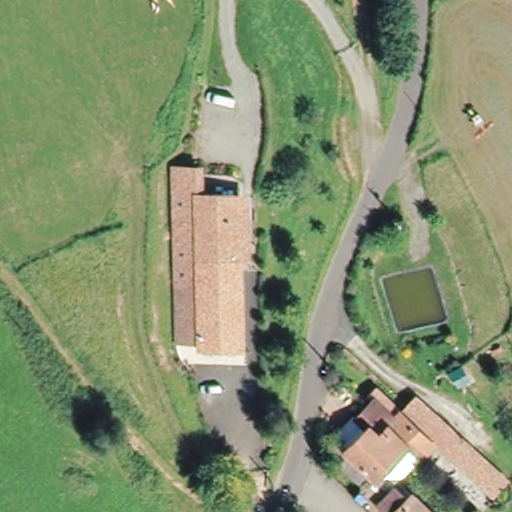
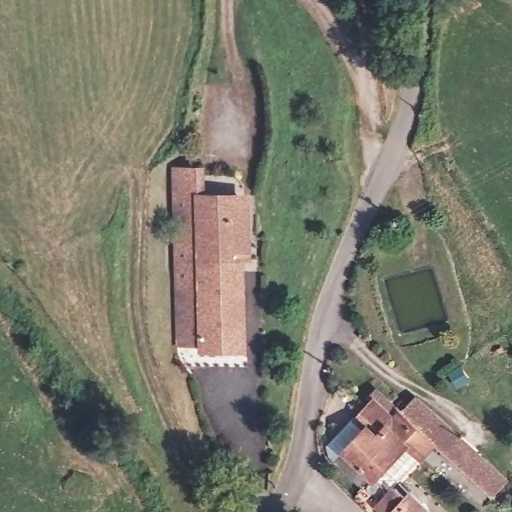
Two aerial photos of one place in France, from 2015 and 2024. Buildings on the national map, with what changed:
unchanged [(172,168),(194,167),(195,193),(200,289),(184,290),(186,327),(202,326),(203,346),(180,347),(173,194),(173,190),(172,168)]
unchanged [(238,191),(245,344),(203,346),(202,326),(186,327),(184,290),(200,289),(195,193),(238,191)]
unchanged [(385,483),(370,497),(334,463),(370,428),(356,413),(374,398),(372,396),(379,392),(398,414),(410,404),(455,452),(439,467),(429,456),(409,477),(394,492),(391,489),(385,483)]
unchanged [(497,495),(481,509),(439,467),(455,452),(497,495)]
unchanged [(386,512),(376,502),(391,489),(394,492),(401,500),(405,497),(421,512),(386,512)]

